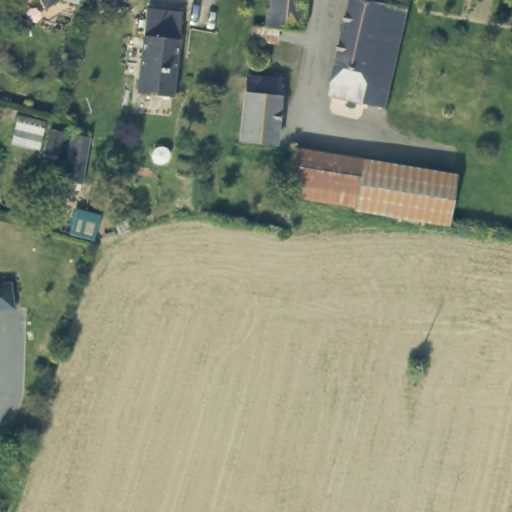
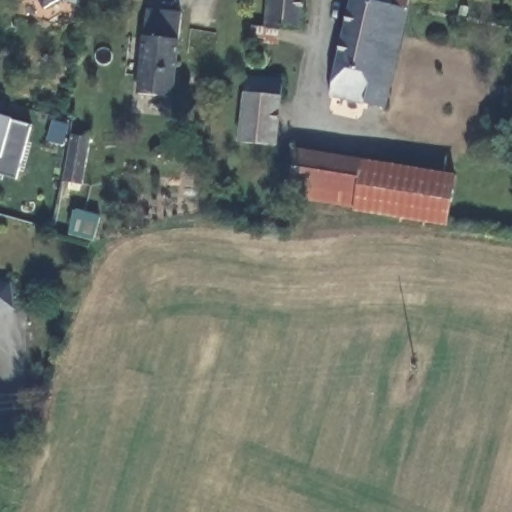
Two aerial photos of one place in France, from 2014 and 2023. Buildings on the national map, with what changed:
unchanged [(43,15),(35,0),(22,7),(19,5),(16,0),(79,0),(76,10),(58,6),(43,15)]
unchanged [(254,31),(269,32),(272,0),(307,0),(304,36),(283,34),(281,50),(252,48),(254,31)]
unchanged [(323,96),(346,0),(402,0),(400,8),(396,28),(377,108),(323,96)]
unchanged [(145,11),(179,15),(170,98),(136,94),(145,11)]
unchanged [(268,68),(265,72),(263,73),(259,73),(255,71),(253,68),(252,64),(253,60),(255,57),(259,55),(263,55),(266,57),(269,60),(268,68)]
unchanged [(244,155),(245,138),(242,137),(249,73),(285,76),(279,141),(278,158),(244,155)]
new [(0,111),(0,102),(4,103),(0,111)]
new [(30,127),(17,177),(0,173),(0,116),(11,119),(30,127)]
unchanged [(89,144),(80,190),(60,187),(69,139),(89,144)]
unchanged [(299,155),(365,166),(356,214),(341,211),(304,205),(291,202),(299,155)]
unchanged [(365,166),(457,181),(449,227),(449,229),(356,214),(365,166)]

